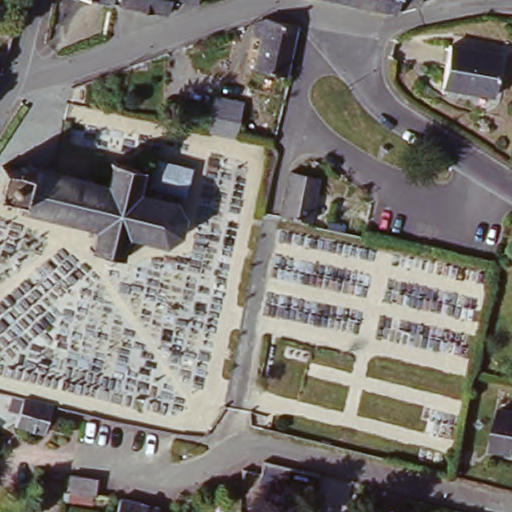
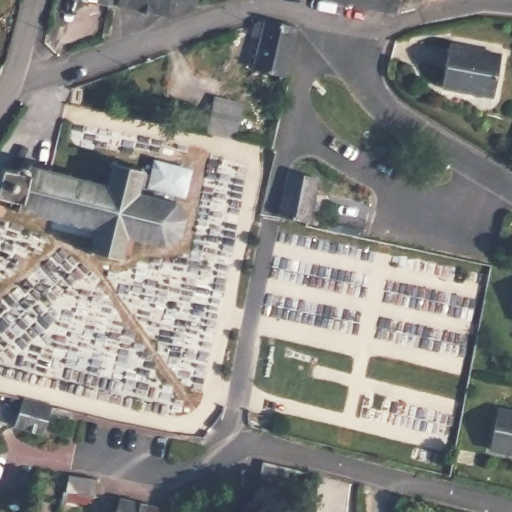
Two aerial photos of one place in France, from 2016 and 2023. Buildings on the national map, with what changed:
unchanged [(88,0),(117,0),(116,6),(88,0)]
unchanged [(187,4),(174,2),(170,17),(124,6),(125,0),(201,0),(199,6),(187,4)]
unchanged [(333,0),(401,0),(400,3),(376,11),(354,5),(353,5),(333,0)]
unchanged [(253,71),(260,40),(248,37),(249,27),(265,22),(296,29),(284,78),(253,71)]
unchanged [(451,46),(503,56),(494,98),(443,88),(451,46)]
unchanged [(215,133),(220,119),(213,116),(218,99),(245,106),(244,114),(238,138),(215,133)]
unchanged [(22,178),(24,175),(109,196),(114,174),(146,180),(146,182),(153,183),(157,168),(194,177),(187,205),(177,202),(175,210),(178,211),(187,228),(183,244),(169,254),(130,245),(125,267),(94,257),(99,236),(20,218),(20,212),(0,206),(0,186),(3,175),(22,178)]
unchanged [(279,219),(289,175),(294,176),(318,181),(309,224),(308,224),(281,219),(279,219)]
unchanged [(43,438),(13,430),(19,414),(9,410),(14,397),(24,400),(53,408),(49,418),(43,438)]
unchanged [(511,455),(490,451),(498,411),(512,414),(512,449),(511,455)]
unchanged [(283,489),(259,485),(265,458),(289,463),(283,489)]
unchanged [(94,498),(84,497),(67,495),(69,478),(86,480),(97,481),(94,498)]
unchanged [(328,496),(339,497),(339,512),(327,512),(328,496)]
unchanged [(124,501),(162,509),(160,512),(121,512),(124,501)]

